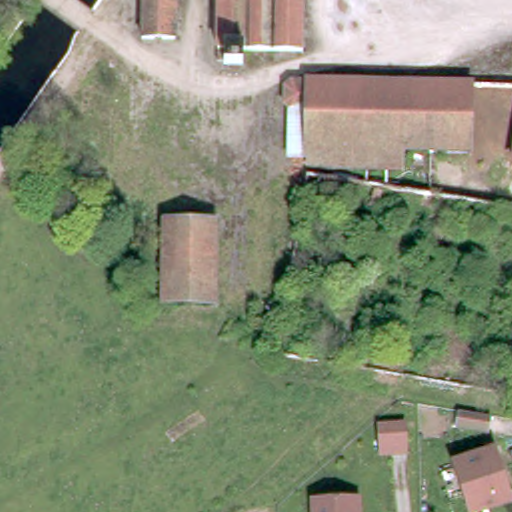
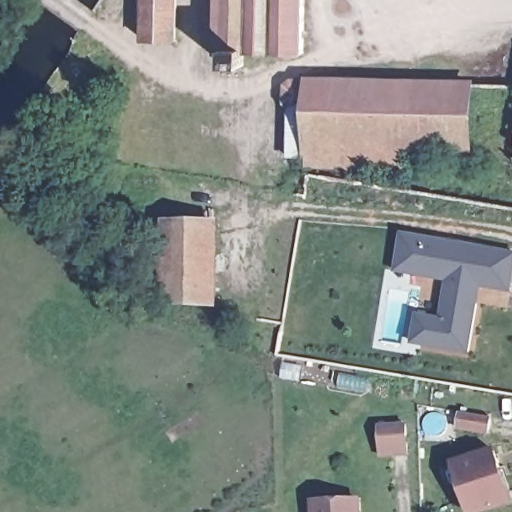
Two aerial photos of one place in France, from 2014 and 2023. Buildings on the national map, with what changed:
unchanged [(176,0),(176,40),(144,39),(145,0),(176,0)]
unchanged [(238,60),(218,59),(218,45),(211,45),(213,0),(299,0),(299,48),(239,46),(238,60)]
unchanged [(404,146),(403,165),(307,162),(308,151),(291,151),(293,106),(288,101),(289,82),(293,78),(306,78),(306,77),(472,81),(469,146),(433,146),(404,146)]
unchanged [(211,220),(211,298),(209,297),(206,297),(160,296),(162,218),(211,220)]
new [(427,316),(443,318),(449,279),(396,270),(403,233),(512,252),(512,281),(511,290),(476,283),(472,302),(477,303),(469,351),(422,343),(414,342),(419,314),(427,316)]
demolished [(301,359),(282,356),(276,355),(281,331),(304,336),(301,359)]
unchanged [(489,433),(458,427),(461,410),(492,416),(489,433)]
unchanged [(407,444),(393,445),(391,426),(406,424),(407,444)]
unchanged [(510,501),(477,512),(471,512),(454,463),(493,450),(510,501)]
unchanged [(314,498),(359,497),(359,512),(314,512),(314,498)]

